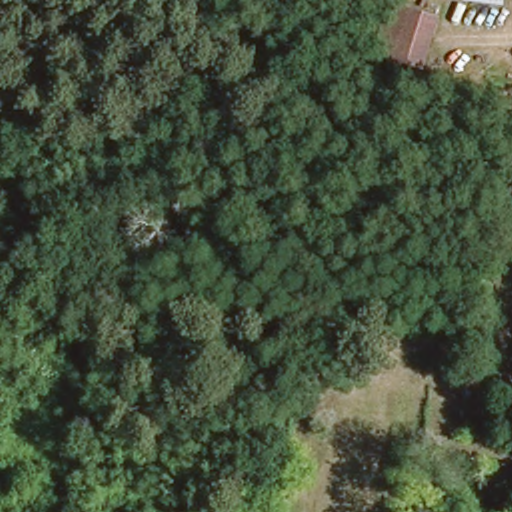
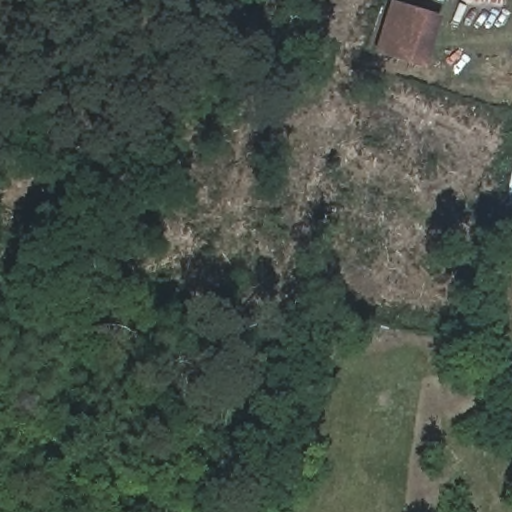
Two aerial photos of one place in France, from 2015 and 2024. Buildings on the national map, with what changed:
unchanged [(501,2),(475,0),(501,0),(501,2)]
unchanged [(391,5),(437,21),(422,65),(376,49),(391,5)]

